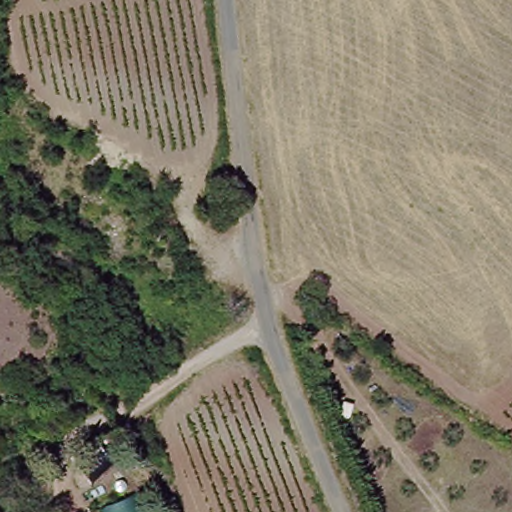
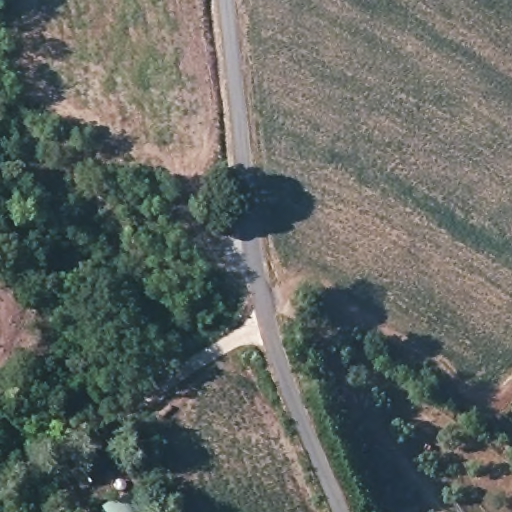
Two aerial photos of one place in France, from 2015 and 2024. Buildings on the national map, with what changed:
unchanged [(104,441),(117,459),(85,484),(76,468),(104,441)]
unchanged [(140,496),(145,512),(104,512),(103,510),(140,496)]

